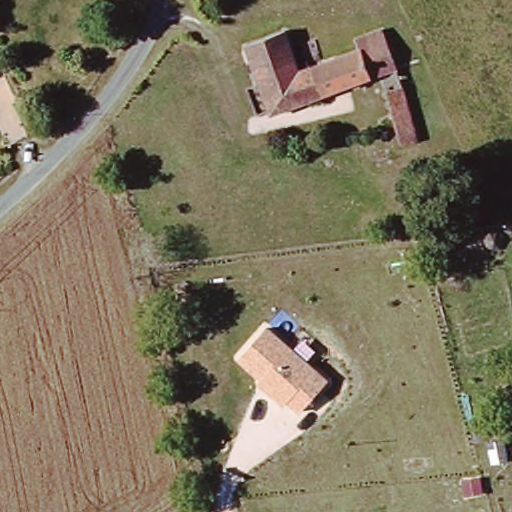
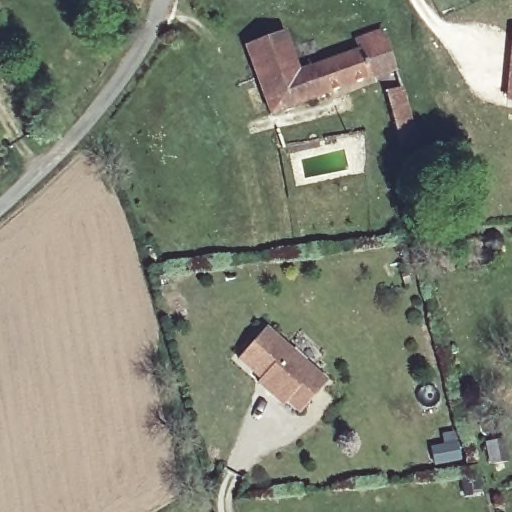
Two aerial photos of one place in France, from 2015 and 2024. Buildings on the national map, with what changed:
new [(506,102),(512,30),(512,102),(506,102)]
unchanged [(362,42),(390,34),(404,73),(276,117),(253,49),(291,35),(304,75),(367,54),(362,42)]
unchanged [(2,62),(0,62),(0,59),(2,62)]
unchanged [(392,90),(405,87),(418,139),(406,142),(392,90)]
unchanged [(237,360),(267,326),(328,381),(299,415),(286,403),(283,407),(257,384),(260,381),(237,360)]

